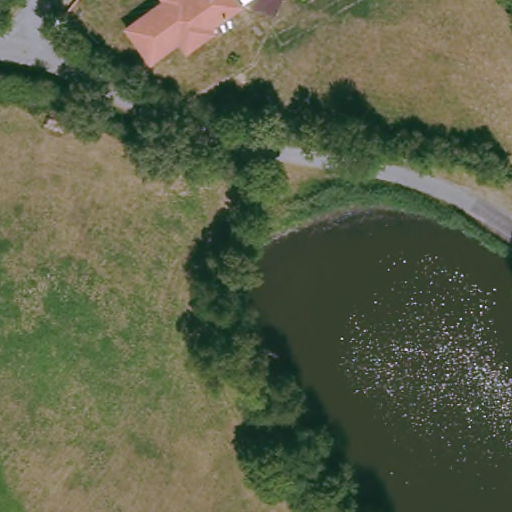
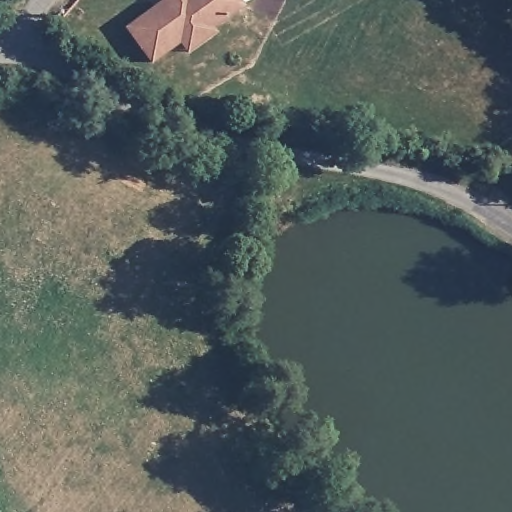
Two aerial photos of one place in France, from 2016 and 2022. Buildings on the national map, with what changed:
unchanged [(177,35),(148,55),(125,21),(152,1),(156,6),(164,0),(239,0),(207,22),(210,26),(185,45),(177,35)]

